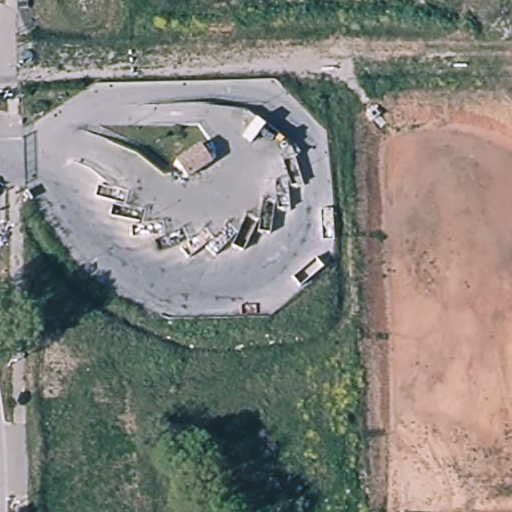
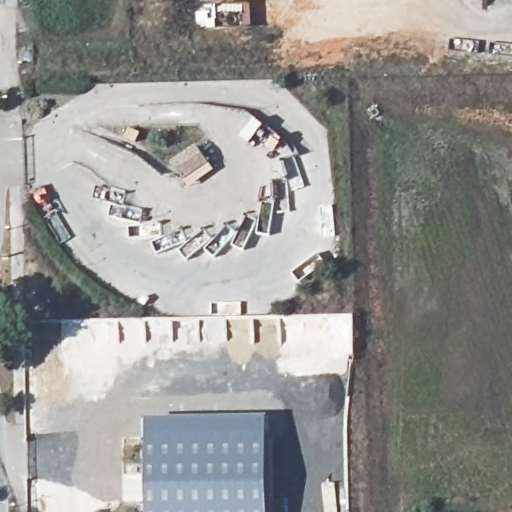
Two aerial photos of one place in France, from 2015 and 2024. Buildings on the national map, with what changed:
unchanged [(196,150),(208,166),(183,183),(172,167),(196,150)]
new [(270,416),(271,512),(149,512),(148,419),(270,416)]

